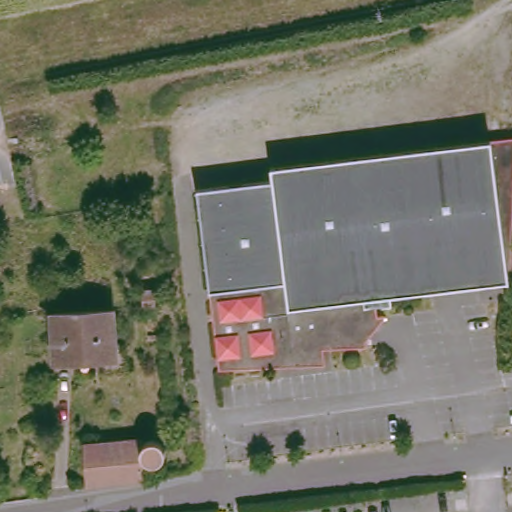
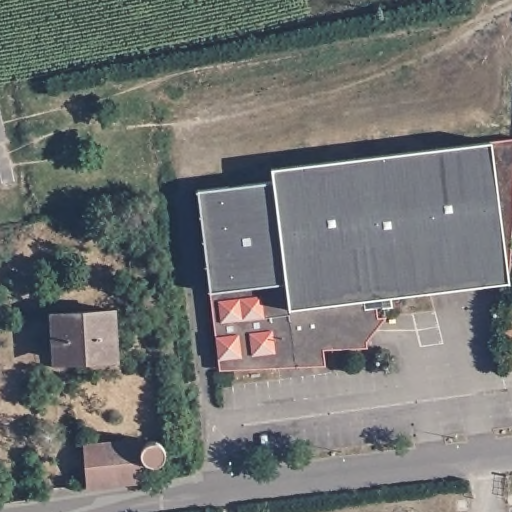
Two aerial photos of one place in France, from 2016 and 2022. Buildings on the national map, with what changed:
unchanged [(301,167),(270,173),(270,163),(300,158),(512,129),(512,225),(308,260),(301,167)]
unchanged [(222,364),(200,192),(273,180),(300,174),(305,264),(511,228),(507,283),(391,298),(392,308),(373,309),(374,320),(377,320),(378,328),(379,336),(367,337),(368,349),(325,353),(327,369),(238,375),(224,377),(222,364)]
unchanged [(156,314),(143,314),(143,294),(155,294),(156,314)]
unchanged [(117,354),(96,355),(96,350),(54,352),(52,306),(116,304),(117,354)]
unchanged [(155,465),(140,467),(141,479),(84,484),(81,443),(137,438),(138,442),(153,441),(156,442),(159,444),(161,447),(162,450),(163,453),(162,456),(161,459),(160,462),(157,464),(155,465)]

